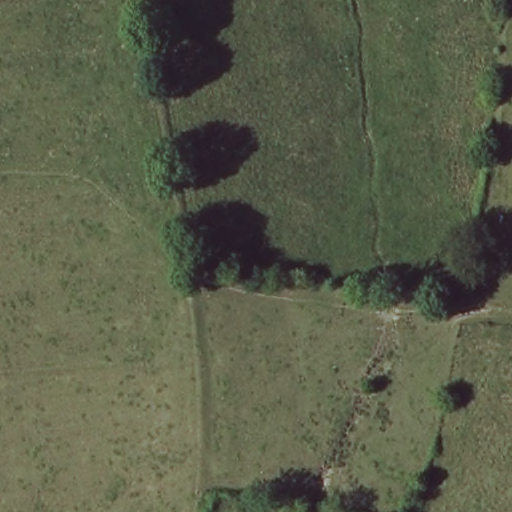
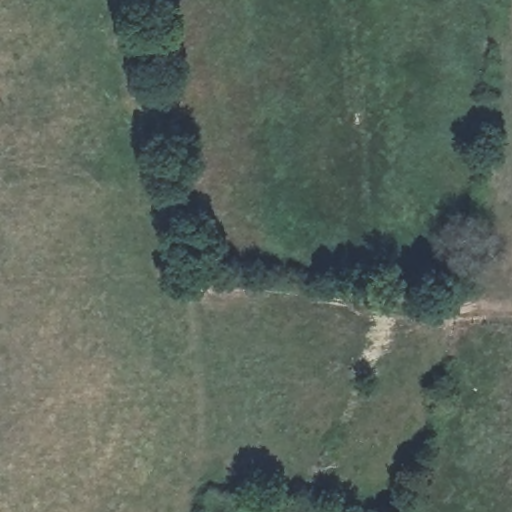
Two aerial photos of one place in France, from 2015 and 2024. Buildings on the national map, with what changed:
[]

